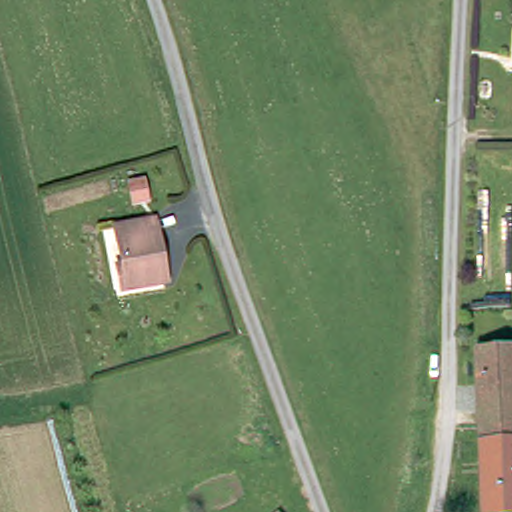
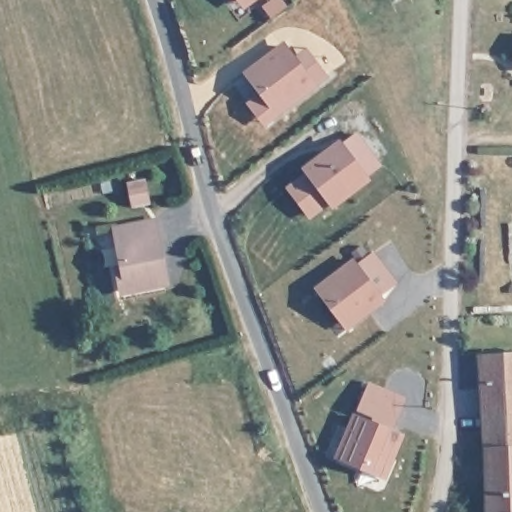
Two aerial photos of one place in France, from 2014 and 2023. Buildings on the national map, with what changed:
new [(245,10),(237,0),(257,0),(245,10)]
new [(295,54),(306,47),(329,77),(319,84),(276,116),(241,72),(282,41),(295,54)]
new [(382,165),(367,176),(370,180),(332,208),(329,203),(310,220),(286,187),(305,172),(302,168),(339,139),(342,142),(357,131),(382,165)]
unchanged [(162,278),(123,287),(120,272),(126,271),(117,227),(150,218),(162,278)]
new [(397,282),(382,295),(386,300),(346,330),(314,287),(353,258),(356,263),(373,250),(397,282)]
unchanged [(475,355),(512,352),(512,437),(480,438),(475,355)]
new [(395,428),(356,412),(369,380),(407,397),(395,428)]
new [(356,412),(395,428),(404,432),(385,480),(335,457),(354,411),(356,412)]
unchanged [(483,512),(480,438),(512,437),(512,512),(483,512)]

